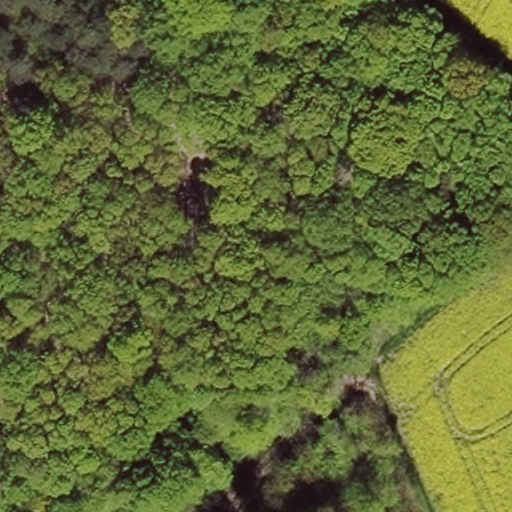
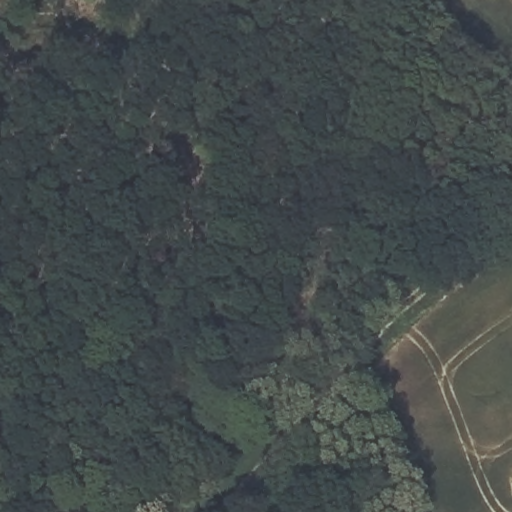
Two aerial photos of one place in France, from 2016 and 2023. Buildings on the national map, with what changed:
unchanged [(238,380),(217,360),(252,325),(268,351),(238,380)]

